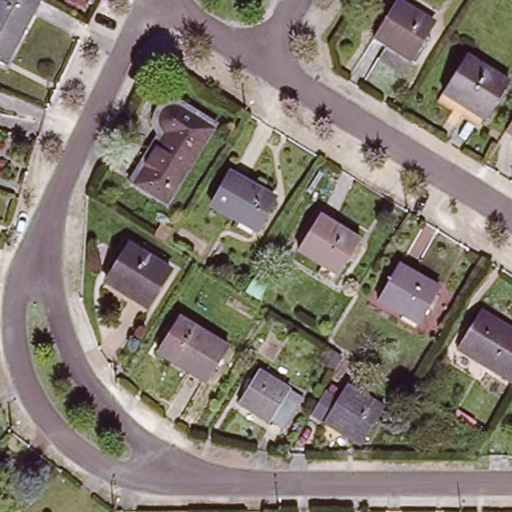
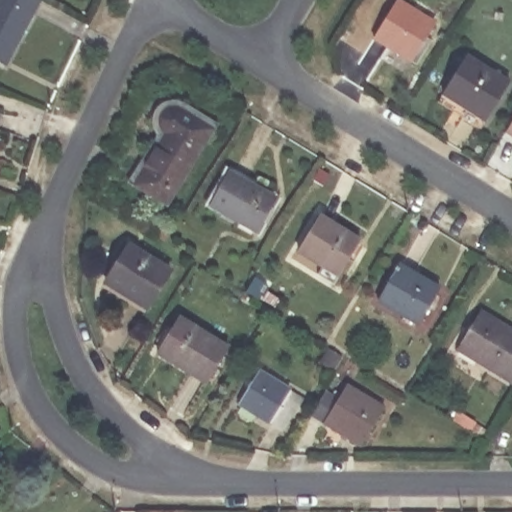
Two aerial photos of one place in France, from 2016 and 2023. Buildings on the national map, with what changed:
unchanged [(31,14),(4,65),(0,63),(0,0),(31,0),(26,10),(31,14)]
unchanged [(374,37),(397,0),(398,0),(412,9),(410,11),(434,26),(427,37),(432,41),(417,65),(412,61),(374,37)]
unchanged [(509,84),(486,120),(443,92),(466,56),(509,84)]
unchanged [(135,190),(128,185),(157,138),(153,133),(158,125),(154,115),(164,107),(173,110),(181,106),(217,127),(213,134),(166,209),(135,190)]
unchanged [(505,132),(512,121),(512,136),(505,132)]
unchanged [(274,197),(256,230),(211,205),(229,173),(274,197)]
unchanged [(359,241),(339,275),(298,250),(319,215),(359,241)]
unchanged [(170,270),(148,307),(106,282),(128,245),(170,270)]
unchanged [(440,288),(419,324),(377,300),(398,265),(440,288)]
unchanged [(269,285),(261,299),(249,292),(258,277),(269,285)]
unchanged [(459,350),(482,312),(512,331),(512,382),(459,350)]
unchanged [(228,348),(208,382),(156,352),(177,317),(228,348)]
unchanged [(341,358),(334,370),(321,362),(329,350),(341,358)]
unchanged [(304,398),(285,430),(239,402),(258,370),(304,398)]
unchanged [(384,407),(361,445),(311,415),(326,391),(338,398),(346,385),(384,407)]

